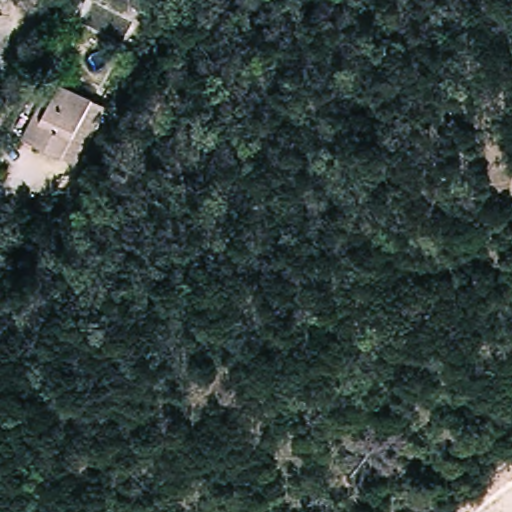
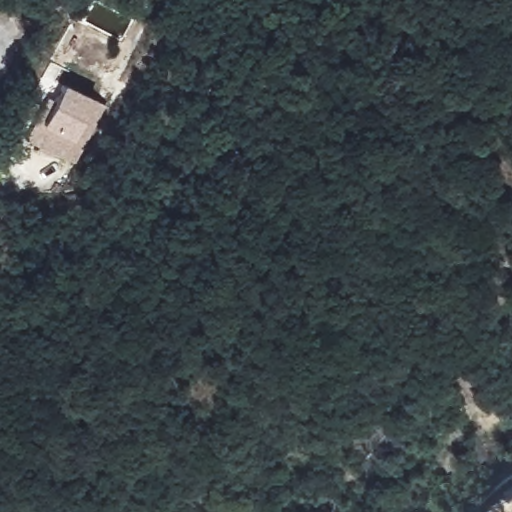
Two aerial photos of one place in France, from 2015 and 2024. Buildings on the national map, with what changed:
unchanged [(32,119),(41,124),(63,83),(110,107),(79,163),(48,146),(25,134),(32,119)]

